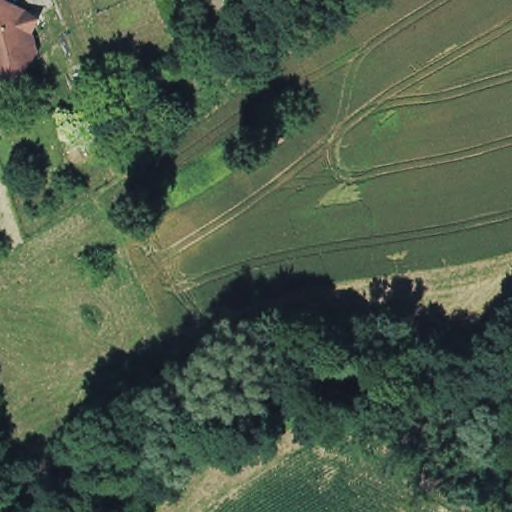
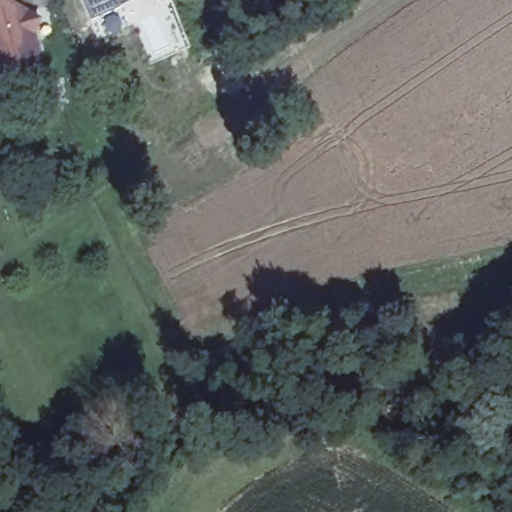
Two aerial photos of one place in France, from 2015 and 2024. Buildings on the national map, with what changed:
unchanged [(30,21),(27,27),(32,48),(25,61),(5,66),(0,63),(0,0),(10,0),(27,10),(30,21)]
new [(76,0),(134,0),(87,23),(76,0)]

